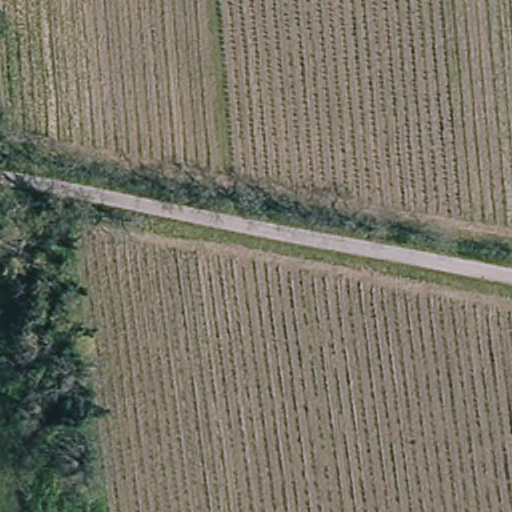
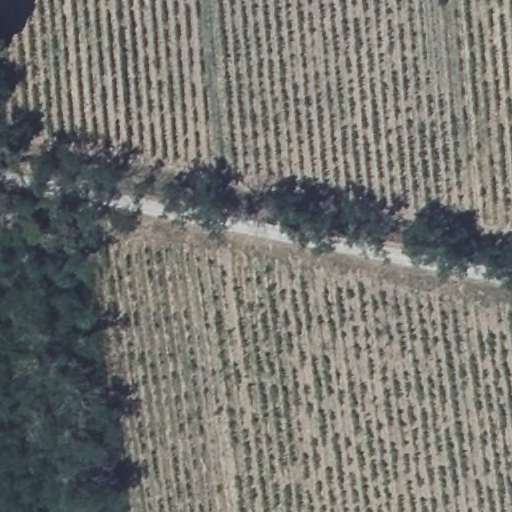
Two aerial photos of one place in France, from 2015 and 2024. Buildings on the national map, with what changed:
[]

